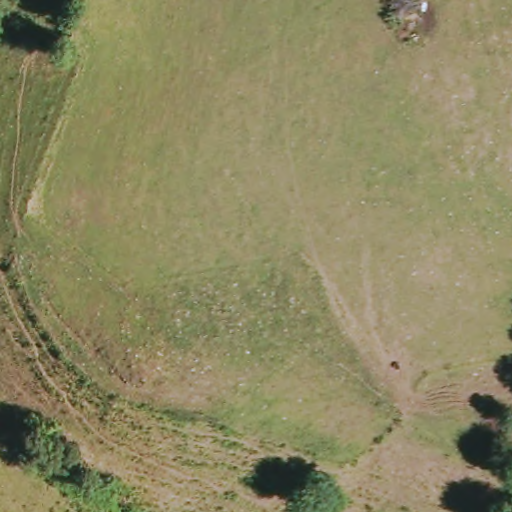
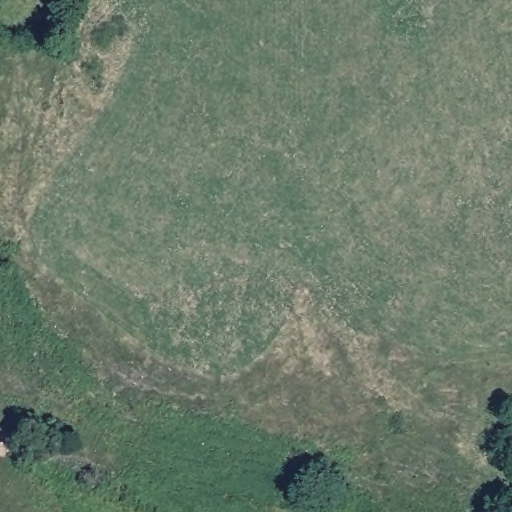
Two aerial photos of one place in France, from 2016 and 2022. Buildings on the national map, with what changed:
[]

